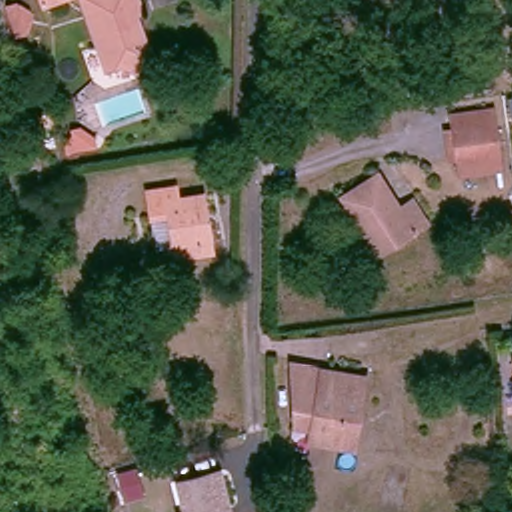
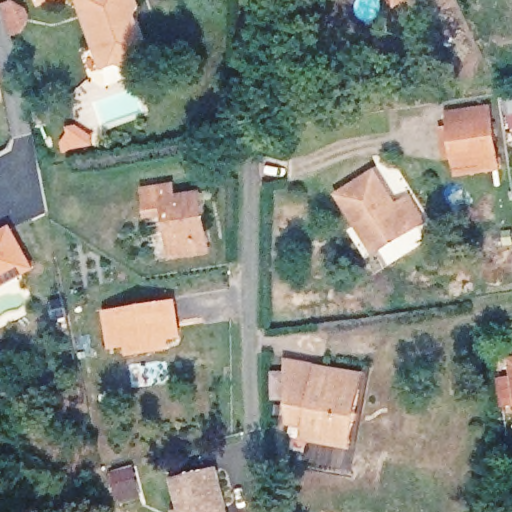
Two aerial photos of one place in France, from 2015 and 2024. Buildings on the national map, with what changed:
unchanged [(125,57),(109,62),(98,30),(91,11),(87,0),(144,0),(140,6),(152,40),(144,64),(125,57)]
unchanged [(398,1),(398,0),(400,0),(398,1)]
unchanged [(5,4),(16,1),(26,7),(30,20),(27,33),(12,39),(5,4)]
unchanged [(504,98),(512,97),(512,119),(508,120),(504,98)]
unchanged [(449,132),(447,113),(477,110),(493,107),(501,173),(455,182),(453,163),(445,164),(441,133),(449,132)]
unchanged [(388,206),(401,198),(416,221),(371,250),(353,221),(349,223),(339,207),(342,205),(335,193),(367,173),(388,206)]
unchanged [(173,257),(157,260),(150,212),(147,190),(176,185),(177,196),(202,192),(210,242),(209,242),(210,251),(173,257)]
new [(13,226),(37,269),(0,289),(0,232),(13,226)]
new [(177,298),(184,341),(172,343),(173,346),(126,353),(125,347),(110,349),(104,310),(177,298)]
unchanged [(512,360),(512,371),(510,360),(512,360)]
unchanged [(285,424),(282,362),(310,367),(300,427),(285,424)]
unchanged [(341,445),(298,437),(300,427),(310,367),(353,374),(341,445)]
unchanged [(130,392),(114,394),(112,378),(128,376),(128,377),(130,392)]
unchanged [(171,480),(212,469),(221,507),(223,512),(175,512),(179,511),(171,480)]

